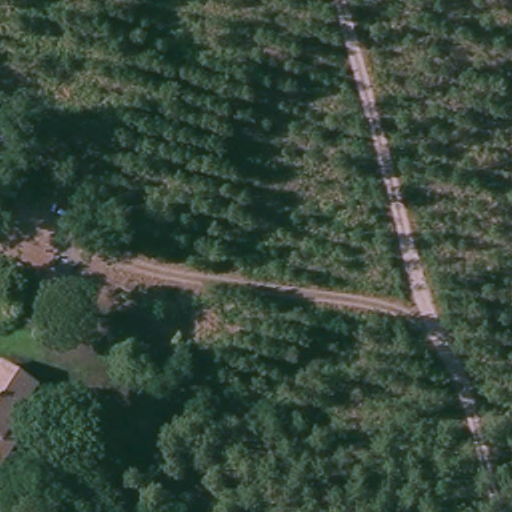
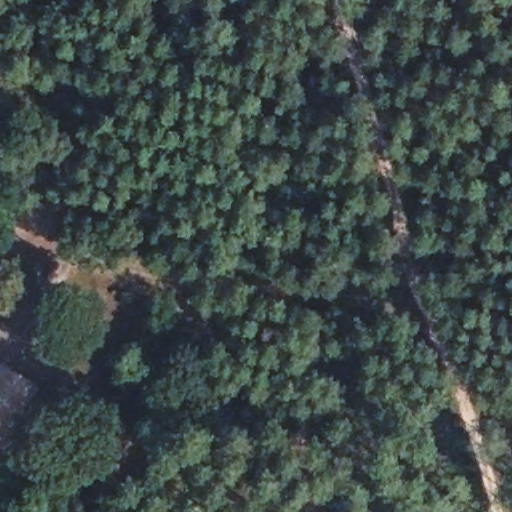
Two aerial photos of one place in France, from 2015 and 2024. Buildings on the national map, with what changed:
unchanged [(0,467),(0,373),(1,370),(36,388),(11,443),(20,447),(7,471),(0,467)]

